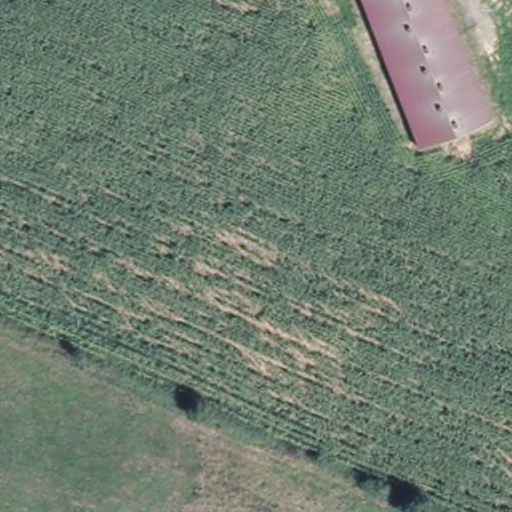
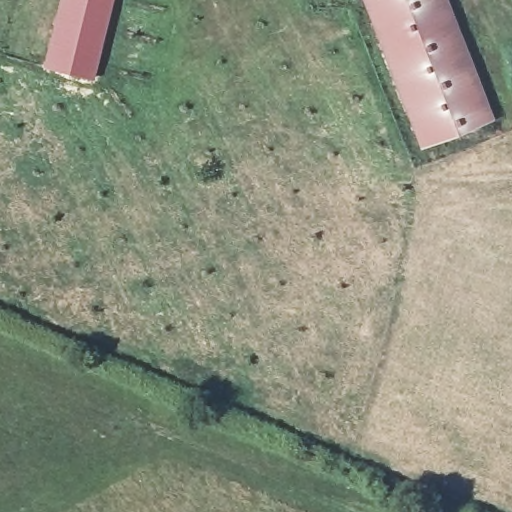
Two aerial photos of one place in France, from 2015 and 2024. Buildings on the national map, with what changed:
new [(40,65),(56,0),(112,0),(92,78),(40,65)]
unchanged [(368,0),(448,0),(495,118),(425,146),(368,0)]

